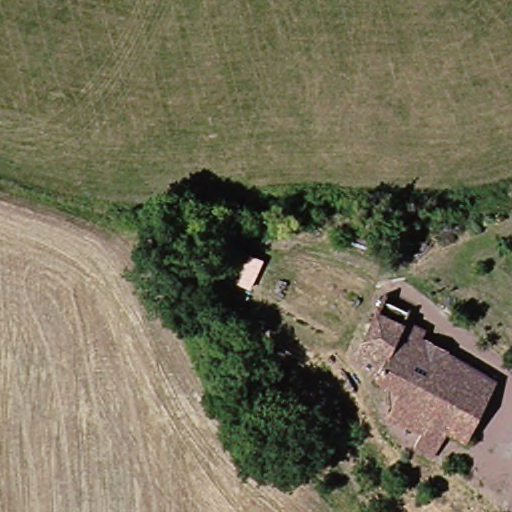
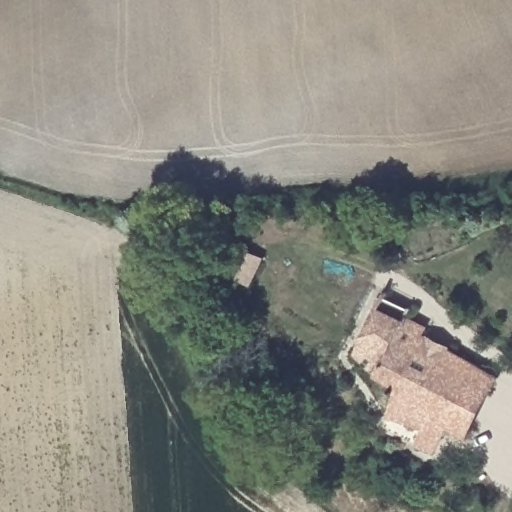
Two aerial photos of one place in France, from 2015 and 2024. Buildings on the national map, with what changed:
unchanged [(452,426),(436,456),(413,447),(422,426),(386,412),(397,384),(359,357),(390,290),(417,312),(407,332),(491,372),(503,382),(492,400),(472,436),(452,426)]

